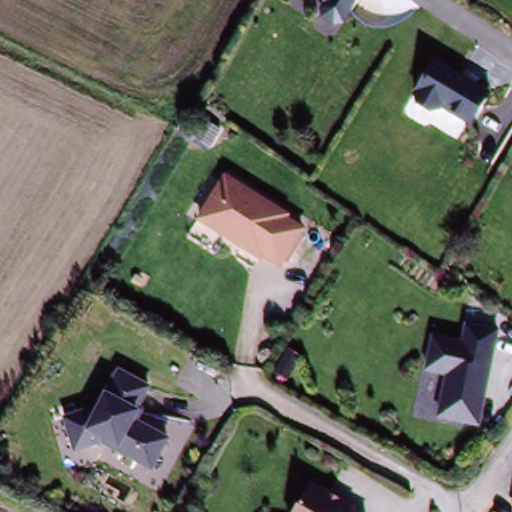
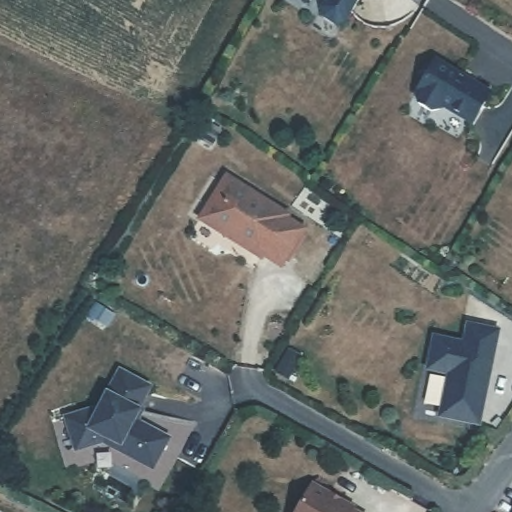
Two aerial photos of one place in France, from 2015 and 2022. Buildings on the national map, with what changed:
unchanged [(341,30),(321,18),(328,0),(359,0),(341,30)]
unchanged [(493,94),(471,128),(444,112),(431,114),(407,100),(433,57),(493,94)]
unchanged [(203,218),(229,178),(291,217),(289,220),(307,231),(286,266),(267,254),(265,258),(248,246),(227,233),(203,218)]
unchanged [(482,420),(442,413),(450,370),(429,366),(435,333),(465,339),(469,320),(499,326),(482,420)]
unchanged [(75,446),(66,414),(100,404),(120,369),(149,385),(136,408),(137,409),(132,417),(167,437),(151,466),(102,438),(75,446)]
unchanged [(349,506),(359,512),(290,512),(307,480),(350,505),(349,506)]

